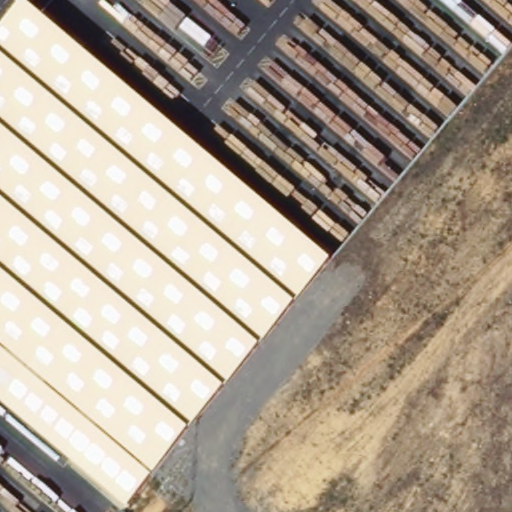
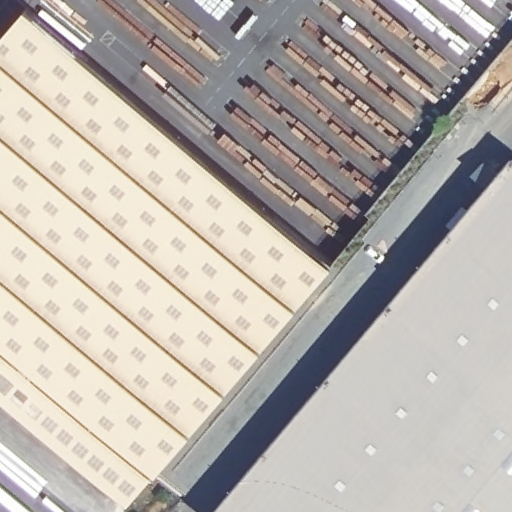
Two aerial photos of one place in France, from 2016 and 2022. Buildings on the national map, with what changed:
unchanged [(26,5),(332,263),(152,476),(124,508),(0,400),(0,36),(26,5)]
new [(512,512),(218,512),(511,164),(512,164),(512,512)]
new [(480,168),(492,178),(483,188),(471,178),(480,168)]

